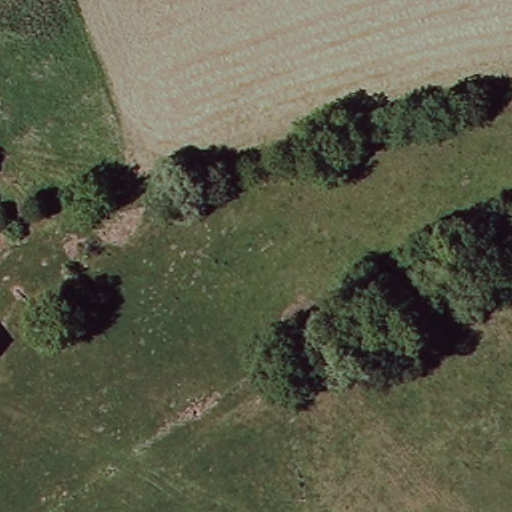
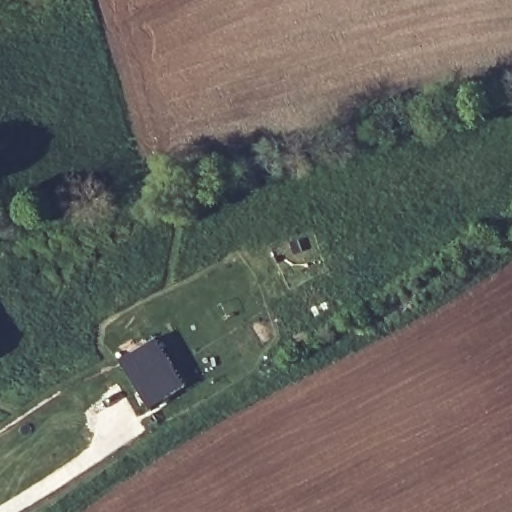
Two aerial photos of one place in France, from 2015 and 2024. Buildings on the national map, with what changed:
new [(156,336),(186,385),(148,407),(117,360),(156,336)]

